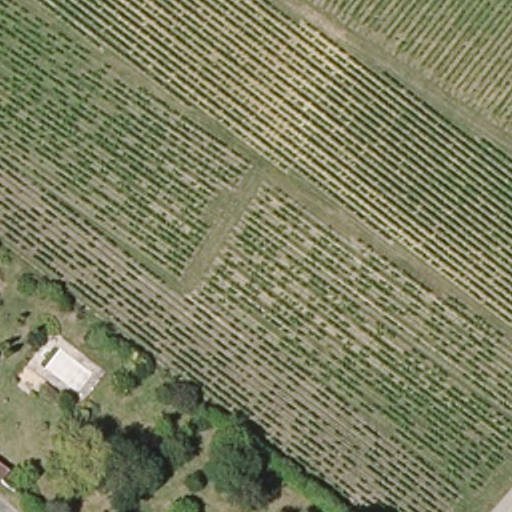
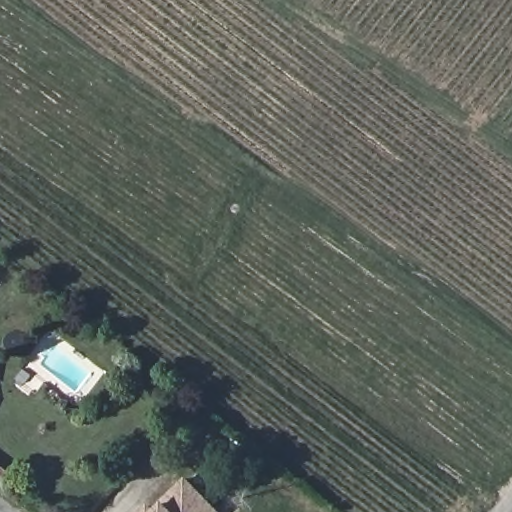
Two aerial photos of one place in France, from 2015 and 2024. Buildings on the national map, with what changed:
new [(217,512),(138,512),(157,494),(161,497),(184,475),(219,511),(217,512)]

